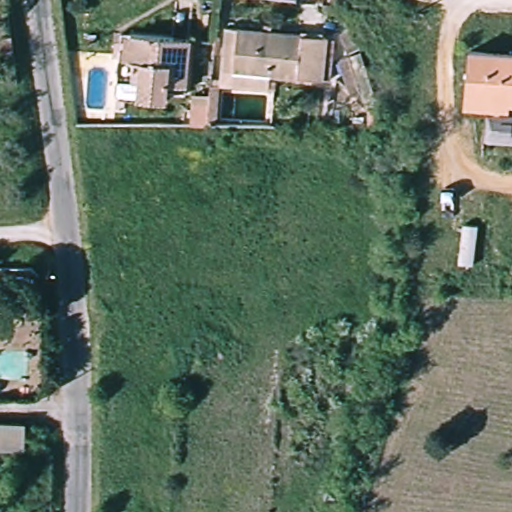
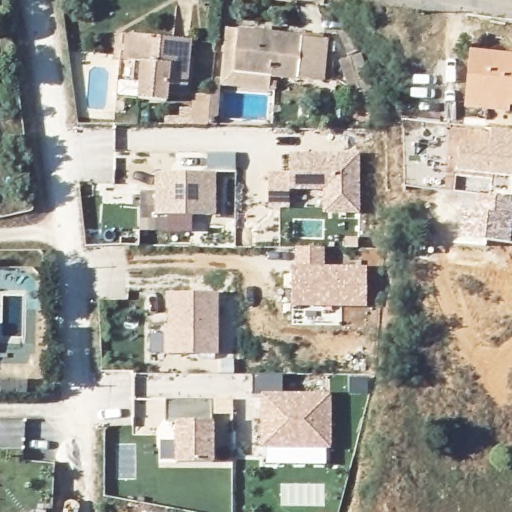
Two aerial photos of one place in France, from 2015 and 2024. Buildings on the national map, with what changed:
unchanged [(156,91),(157,76),(146,74),(147,63),(128,60),(115,59),(119,31),(131,33),(192,39),(186,94),(156,91)]
unchanged [(324,81),(223,71),(228,31),(328,42),(324,81)]
unchanged [(503,110),(504,104),(464,100),(469,55),(512,60),(512,111),(503,110)]
new [(512,130),(512,175),(457,171),(458,145),(489,148),(490,129),(512,130)]
new [(266,172),(287,173),(288,154),(357,156),(354,215),(320,214),(321,190),(286,189),(285,207),(264,206),(266,172)]
new [(153,171),(213,171),(213,213),(153,214),(153,171)]
new [(512,198),(512,220),(510,241),(460,238),(463,210),(475,211),(477,196),(512,198)]
new [(366,265),(366,306),(293,307),(292,266),(295,266),(295,249),(325,249),(325,266),(366,265)]
new [(163,289),(213,290),(212,351),(165,351),(165,306),(163,306),(163,289)]
new [(249,371),(280,371),(280,391),(327,392),(327,444),(259,443),(260,392),(249,392),(249,371)]
new [(165,400),(212,400),(211,463),(175,464),(175,423),(164,423),(165,400)]
demolished [(23,454),(0,452),(0,420),(27,423),(23,454)]
new [(41,512),(29,512),(29,509),(42,509),(41,512)]

